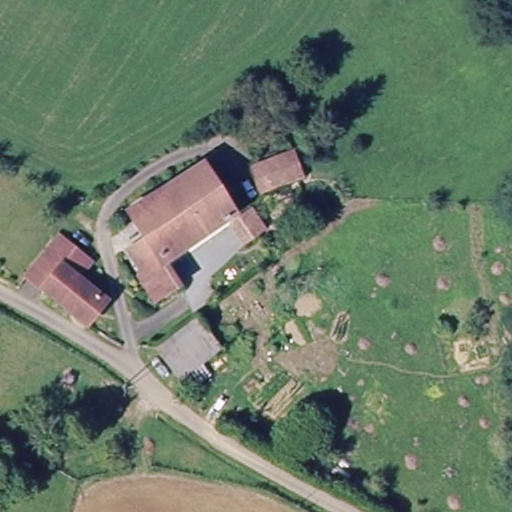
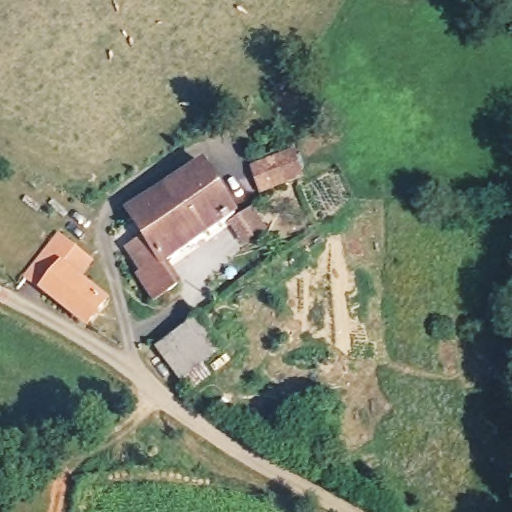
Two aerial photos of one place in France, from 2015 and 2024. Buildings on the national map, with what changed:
unchanged [(270,194),(258,168),(276,155),(300,143),(313,170),(289,183),(270,194)]
unchanged [(133,215),(205,165),(238,219),(164,270),(150,245),(133,215)]
unchanged [(264,237),(254,245),(247,229),(258,219),(264,237)]
unchanged [(178,294),(153,314),(124,264),(150,245),(164,270),(178,294)]
unchanged [(25,279),(45,250),(111,297),(92,324),(25,279)]
unchanged [(204,394),(193,400),(186,384),(178,379),(166,348),(209,320),(219,338),(229,359),(212,369),(218,387),(204,394)]

